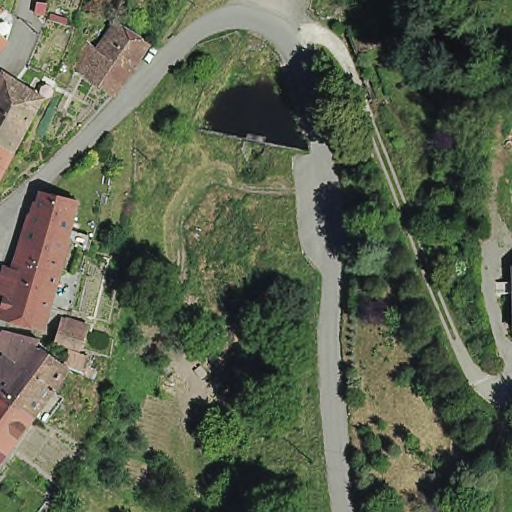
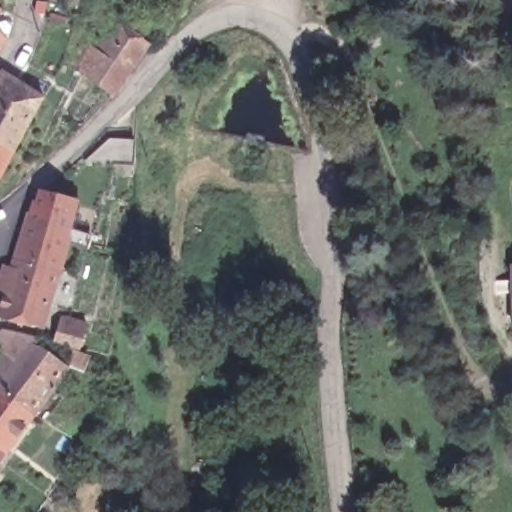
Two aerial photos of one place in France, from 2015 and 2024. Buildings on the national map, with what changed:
unchanged [(37,2),(47,3),(45,13),(37,11),(37,2)]
unchanged [(94,44),(113,16),(145,39),(127,64),(94,44)]
unchanged [(356,54),(350,38),(375,30),(381,45),(356,54)]
unchanged [(83,37),(94,44),(127,64),(109,90),(67,62),(83,37)]
unchanged [(0,77),(30,95),(39,101),(8,156),(0,152),(0,77)]
unchanged [(0,152),(8,156),(0,171),(0,152)]
unchanged [(70,245),(63,242),(30,225),(47,190),(80,201),(73,228),(92,233),(89,245),(71,241),(70,245)]
unchanged [(62,272),(61,275),(18,260),(30,225),(63,242),(70,245),(62,272)]
unchanged [(8,298),(0,296),(0,288),(2,282),(5,266),(16,270),(18,260),(61,275),(50,310),(45,328),(3,316),(8,298)]
unchanged [(510,264),(512,264),(512,311),(510,264)]
unchanged [(71,270),(80,271),(73,293),(65,290),(71,270)]
unchanged [(57,324),(82,331),(77,348),(53,342),(57,324)]
unchanged [(10,371),(15,362),(2,352),(17,332),(31,341),(50,354),(69,367),(38,410),(11,448),(1,463),(0,463),(0,374),(5,377),(10,371)]

